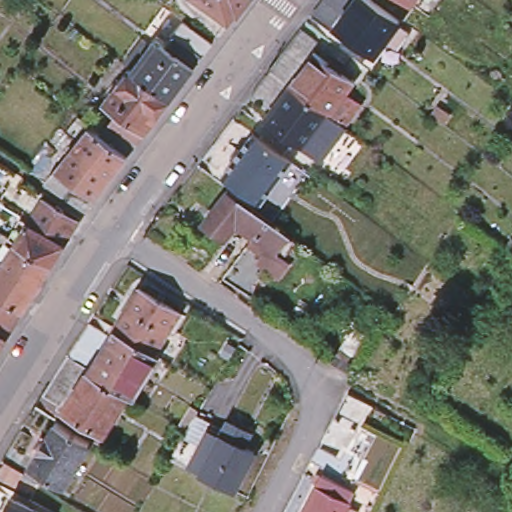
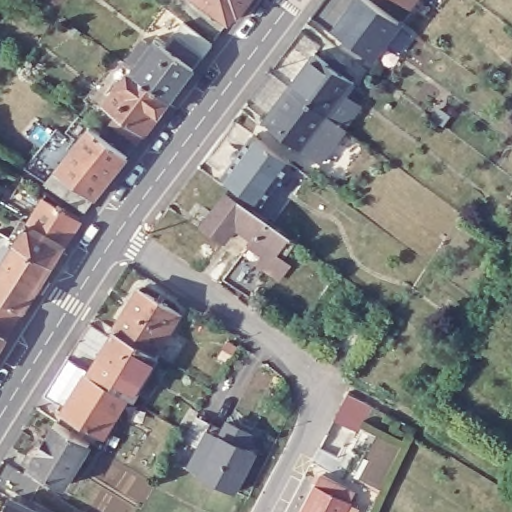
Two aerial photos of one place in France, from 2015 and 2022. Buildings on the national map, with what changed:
unchanged [(233,3),(226,12),(211,0),(238,0),(236,3),(233,3)]
unchanged [(344,27),(337,22),(354,0),(378,0),(403,18),(399,22),(411,30),(399,46),(388,37),(376,52),(371,47),(366,54),(339,33),(344,27)]
unchanged [(164,37),(176,22),(204,44),(193,60),(161,100),(125,72),(157,31),(164,37)]
unchanged [(308,151),(269,121),(274,114),(252,99),(273,71),(304,30),(324,45),(319,53),(334,65),(339,59),(346,66),(344,72),(358,82),(356,86),(369,96),(346,126),(350,129),(324,164),(308,151)]
unchanged [(125,72),(161,100),(135,135),(96,106),(123,71),(125,72)]
unchanged [(226,175),(206,160),(224,136),(236,119),(256,134),(295,162),(264,202),(226,175)]
unchanged [(38,186),(49,171),(83,127),(93,136),(103,122),(129,142),(119,156),(87,199),(76,212),(38,186)]
unchanged [(239,259),(258,236),(238,222),(226,239),(204,223),(230,189),(292,235),(279,252),(262,276),(239,259)]
unchanged [(13,239),(25,219),(40,195),(74,217),(58,242),(51,254),(52,254),(48,260),(45,266),(44,265),(35,280),(19,306),(0,294),(0,257),(13,239)]
unchanged [(119,327),(117,325),(142,286),(182,310),(158,350),(119,327)]
unchanged [(108,431),(67,406),(48,393),(71,357),(92,322),(114,336),(93,369),(131,393),(108,431)]
unchanged [(158,350),(163,353),(149,374),(136,396),(131,393),(93,369),(114,336),(119,327),(158,350)]
unchanged [(0,337),(0,331),(3,332),(0,337)]
unchanged [(231,492),(197,474),(187,470),(183,467),(170,461),(181,441),(193,448),(207,424),(220,432),(224,423),(246,435),(241,447),(251,454),(231,492)]
unchanged [(14,447),(33,459),(25,472),(28,475),(33,466),(58,424),(93,446),(66,487),(56,482),(52,490),(43,483),(33,501),(0,482),(0,472),(6,461),(14,447)]
unchanged [(319,486),(326,474),(357,491),(353,498),(354,501),(353,505),(349,512),(305,512),(319,486)]
unchanged [(14,497),(41,512),(6,512),(14,497)]

